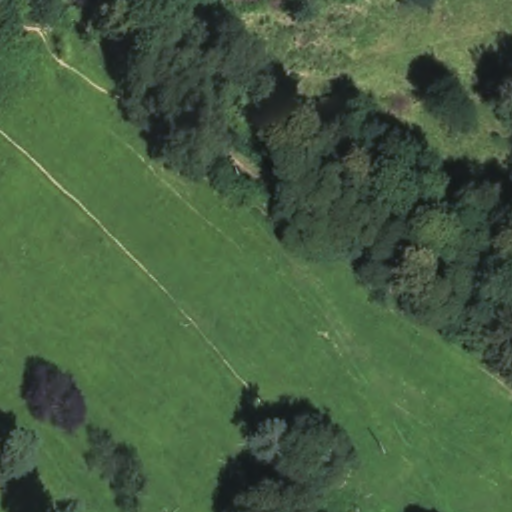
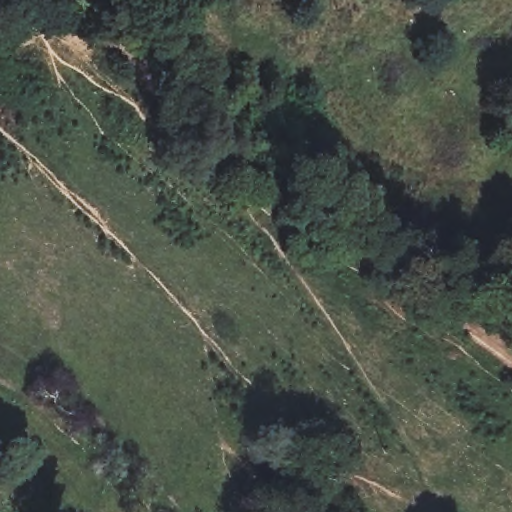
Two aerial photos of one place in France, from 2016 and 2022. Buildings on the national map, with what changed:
[]

